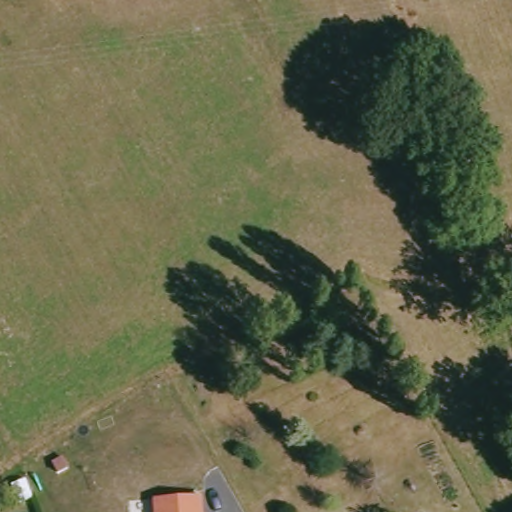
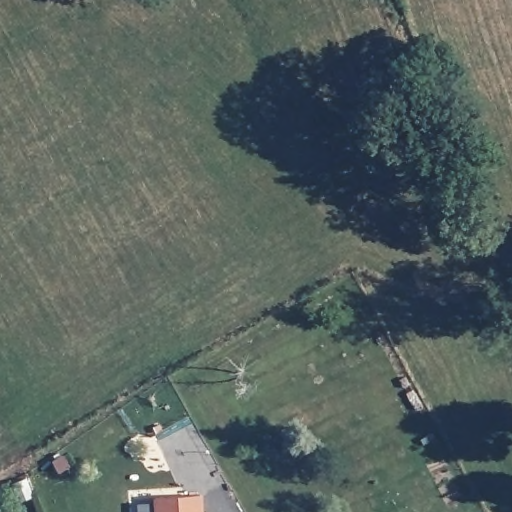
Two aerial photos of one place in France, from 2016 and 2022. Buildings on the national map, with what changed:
unchanged [(154,498),(202,497),(202,512),(154,512),(154,498)]

